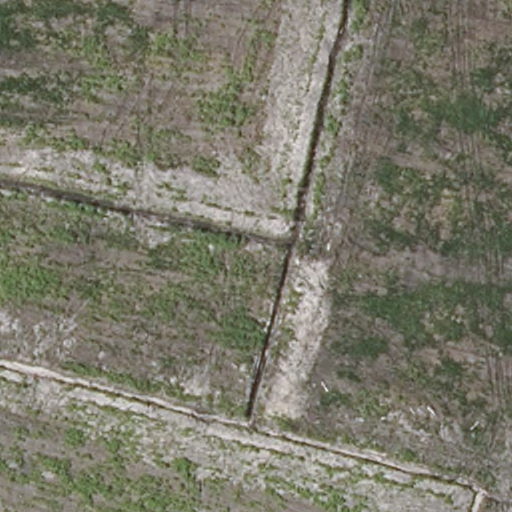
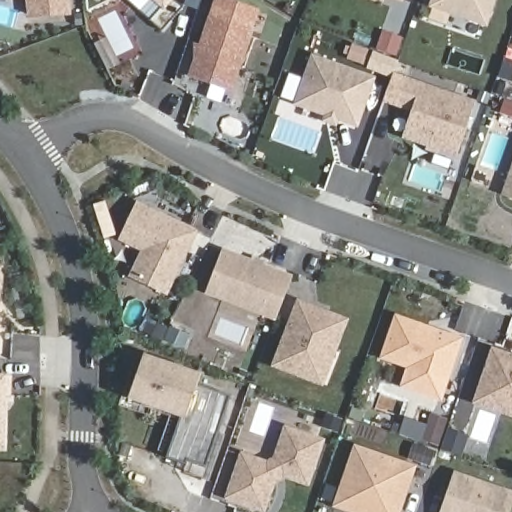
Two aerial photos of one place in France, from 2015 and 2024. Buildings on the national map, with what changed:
new [(32,16),(30,0),(66,0),(67,12),(32,16)]
new [(162,31),(150,21),(162,7),(154,0),(175,0),(183,7),(162,31)]
new [(393,0),(404,0),(403,4),(393,0)]
new [(433,0),(496,0),(488,25),(431,5),(433,0)]
new [(231,92),(186,76),(208,12),(254,29),(231,92)]
new [(358,127),(340,121),(337,127),(322,122),(325,116),(293,105),(311,54),(376,77),(358,127)]
new [(455,158),(400,139),(409,111),(394,106),(404,76),(476,101),(455,158)]
new [(512,164),(512,199),(501,195),(512,164)]
new [(132,274),(144,250),(122,239),(138,205),(194,231),(165,291),(132,274)]
new [(221,248),(292,275),(275,321),(205,293),(221,248)]
new [(1,267),(0,315),(0,267),(1,267)]
new [(323,387),(269,367),(296,298),(349,318),(323,387)]
new [(393,313),(462,337),(447,382),(378,358),(393,313)]
new [(490,346),(512,353),(512,417),(471,403),(490,346)]
new [(148,358),(203,379),(201,390),(230,400),(207,466),(188,459),(186,463),(167,456),(182,412),(133,395),(148,358)]
new [(0,449),(0,374),(12,375),(12,397),(7,396),(5,450),(0,449)]
new [(309,486),(277,475),(265,512),(262,512),(224,500),(239,451),(271,462),(283,425),(324,438),(309,486)]
new [(331,507),(353,443),(417,465),(401,512),(345,512),(331,507)]
new [(454,471),(512,491),(512,503),(509,512),(439,512),(454,471)]

